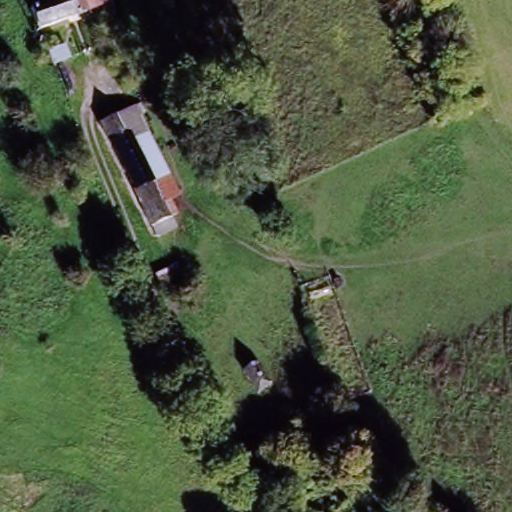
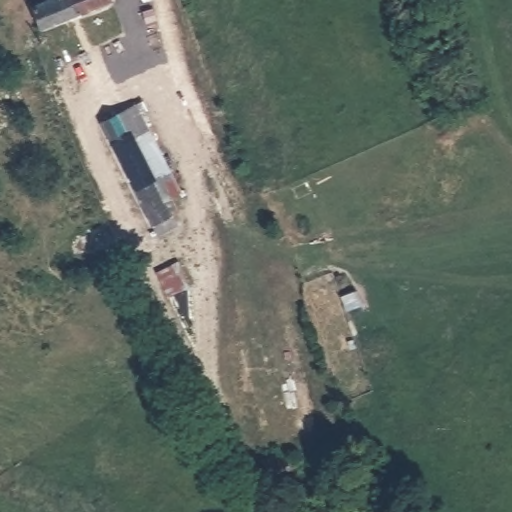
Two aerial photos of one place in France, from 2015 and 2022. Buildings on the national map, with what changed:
unchanged [(34,1),(39,0),(112,0),(40,22),(34,1)]
unchanged [(152,222),(135,189),(112,144),(97,119),(140,105),(149,125),(167,170),(177,190),(170,193),(180,219),(157,234),(152,222)]
unchanged [(193,289),(180,299),(164,279),(177,269),(193,289)]
unchanged [(243,362),(257,354),(273,379),(258,387),(243,362)]

